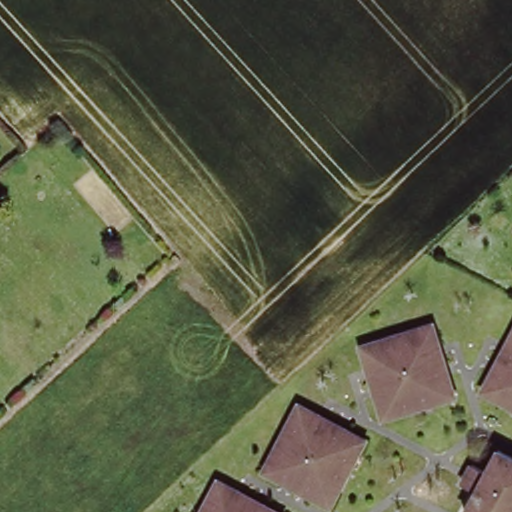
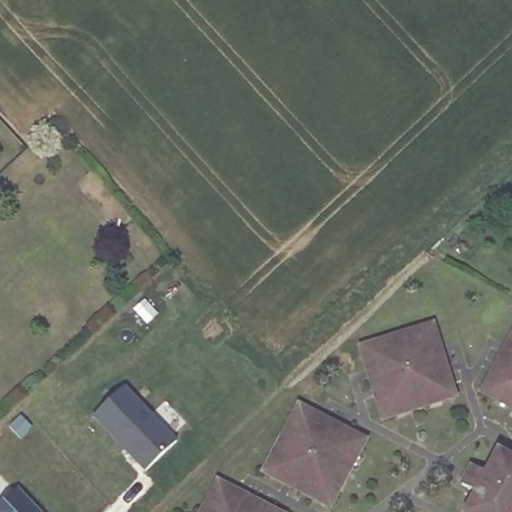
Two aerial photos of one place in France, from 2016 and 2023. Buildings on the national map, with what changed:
unchanged [(383,416),(377,395),(370,368),(363,345),(378,340),(417,330),(435,325),(441,347),(449,374),(455,396),(438,400),(398,412),(383,416)]
unchanged [(497,367),(510,345),(512,342),(512,401),(501,395),(487,387),(497,367)]
new [(146,471),(92,416),(125,385),(178,440),(146,471)]
unchanged [(261,467),(268,455),(288,416),(296,402),(318,414),(341,426),(361,438),(354,452),(333,490),(326,502),(305,491),(282,479),(261,467)]
unchanged [(470,490),(480,471),(493,478),(506,455),(512,459),(512,512),(475,512),(483,497),(470,490)]
unchanged [(214,476),(235,488),(260,501),(279,512),(195,512),(207,489),(214,476)]
new [(42,512),(0,512),(0,504),(18,487),(42,512)]

